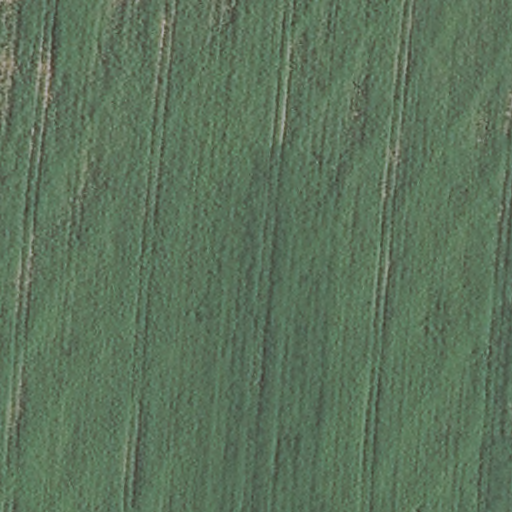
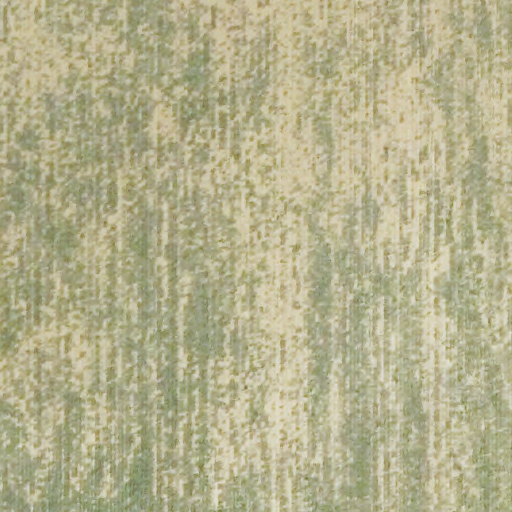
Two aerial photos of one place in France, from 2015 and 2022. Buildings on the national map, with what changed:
[]

